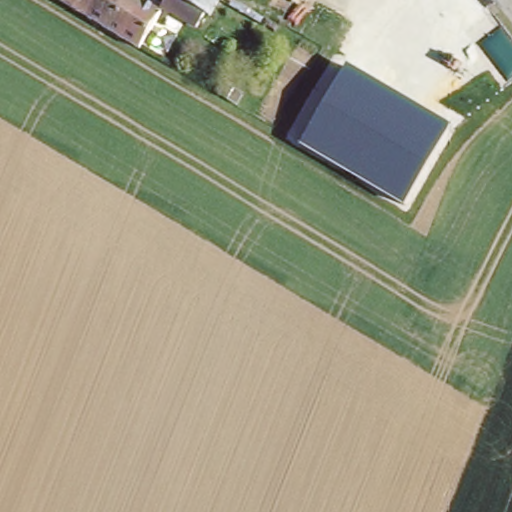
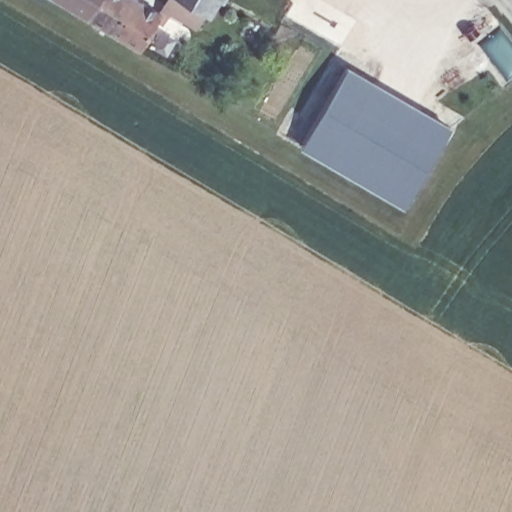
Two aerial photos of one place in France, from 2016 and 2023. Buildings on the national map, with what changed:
unchanged [(57,0),(139,0),(162,14),(169,18),(147,39),(140,50),(57,0)]
unchanged [(210,18),(205,15),(197,29),(164,9),(162,8),(166,0),(220,0),(220,1),(210,18)]
unchanged [(405,207),(300,146),(347,65),(451,125),(405,207)]

